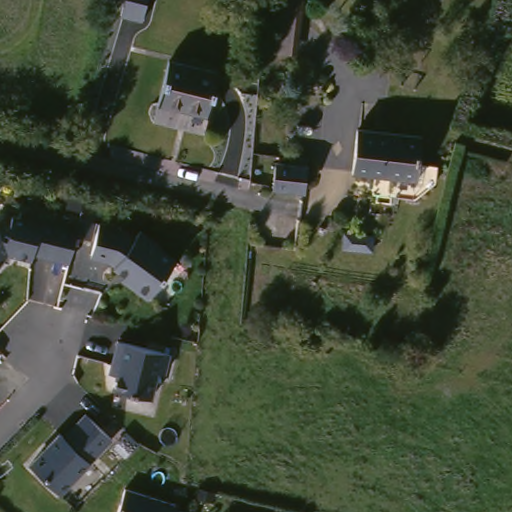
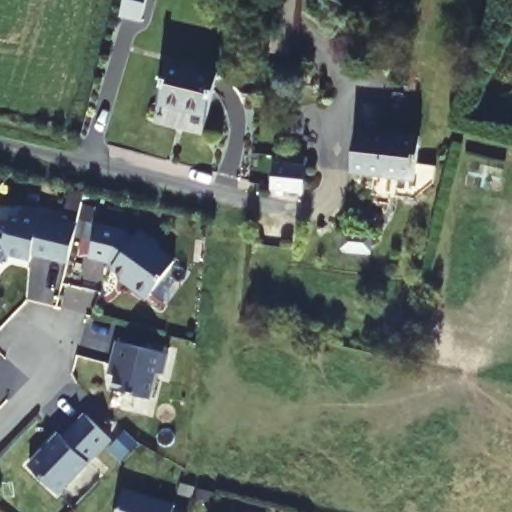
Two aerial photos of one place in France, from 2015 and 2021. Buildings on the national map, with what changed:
unchanged [(139,24),(119,19),(124,0),(144,0),(139,24)]
unchanged [(279,0),(300,0),(294,53),(273,50),(279,0)]
unchanged [(216,74),(206,117),(159,106),(169,63),(216,74)]
unchanged [(351,127),(413,134),(411,153),(426,155),(427,175),(410,193),(365,190),(367,171),(347,169),(351,127)]
unchanged [(276,165),(304,170),(300,193),(272,188),(276,165)]
unchanged [(81,221),(72,260),(36,253),(36,257),(11,253),(0,268),(0,216),(21,212),(81,221)]
unchanged [(107,223),(129,225),(140,234),(144,230),(181,261),(151,296),(113,265),(116,260),(113,258),(98,251),(107,223)]
unchanged [(121,339),(176,353),(172,373),(164,372),(156,396),(123,387),(125,377),(114,371),(121,339)]
unchanged [(61,433),(66,436),(88,413),(112,440),(65,493),(34,462),(61,433)]
unchanged [(176,509),(183,512),(116,512),(124,488),(177,504),(176,509)]

